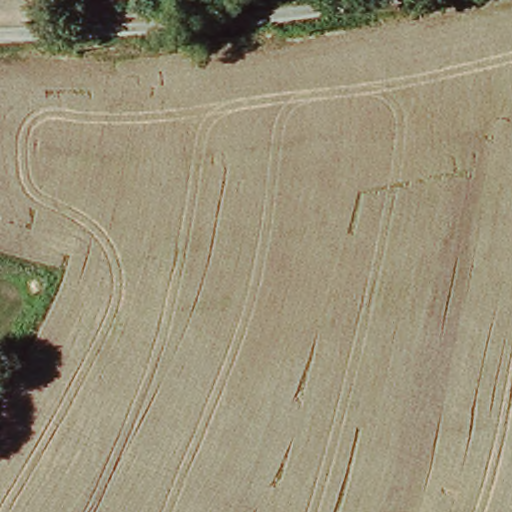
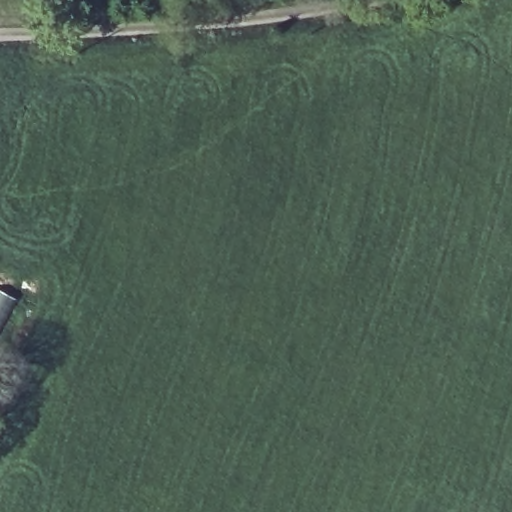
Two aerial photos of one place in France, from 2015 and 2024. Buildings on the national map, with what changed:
new [(0,335),(0,290),(18,300),(0,335)]

